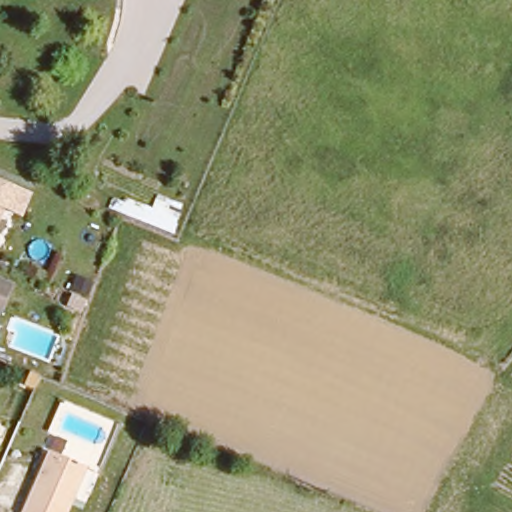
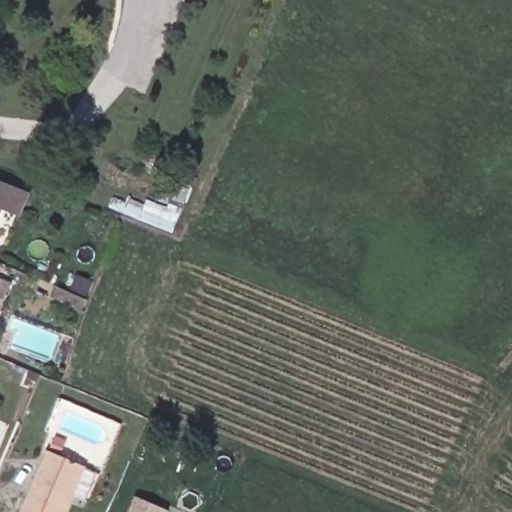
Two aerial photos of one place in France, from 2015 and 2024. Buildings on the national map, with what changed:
unchanged [(0,250),(0,185),(29,197),(20,217),(15,215),(0,250)]
unchanged [(10,286),(0,311),(0,282),(10,286)]
unchanged [(24,512),(50,455),(83,471),(65,512),(24,512)]
new [(169,511),(169,512),(131,512),(137,496),(169,511)]

